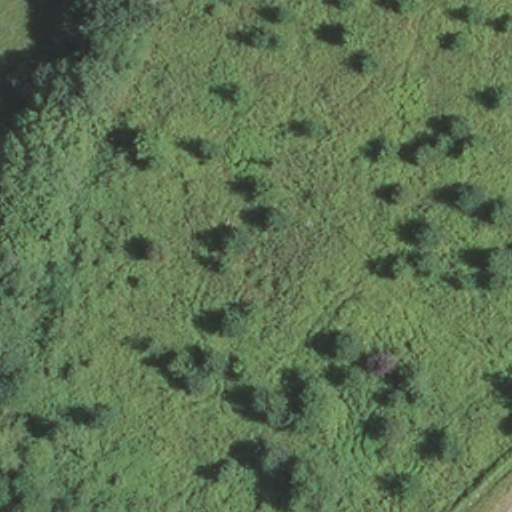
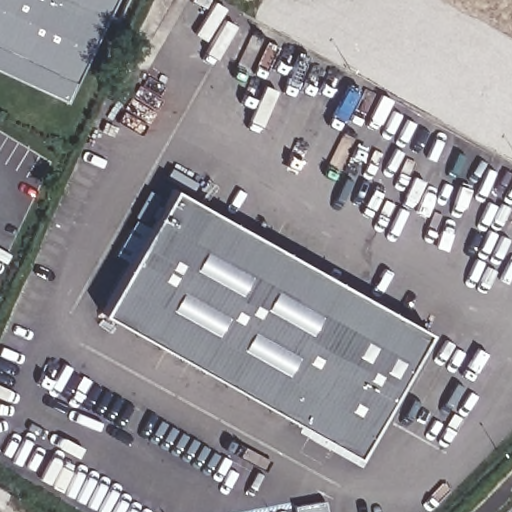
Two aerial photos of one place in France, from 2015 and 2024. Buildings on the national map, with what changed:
new [(72,101),(0,67),(0,0),(120,0),(72,101)]
new [(357,457),(102,315),(174,187),(428,331),(357,457)]

